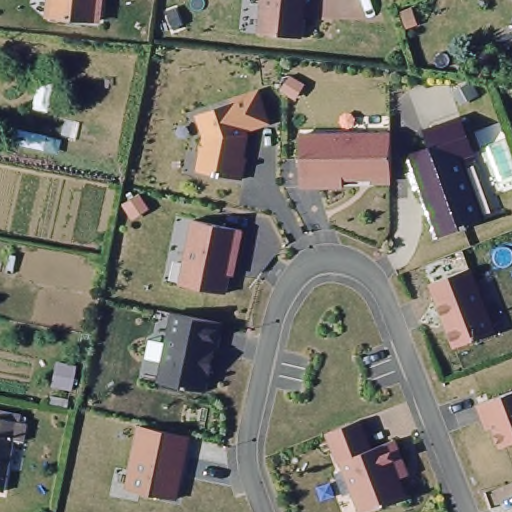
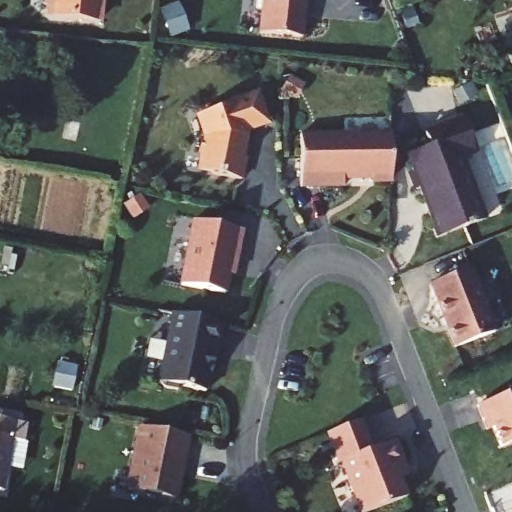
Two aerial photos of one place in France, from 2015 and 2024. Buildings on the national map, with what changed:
unchanged [(52,19),(54,0),(103,0),(101,24),(52,19)]
unchanged [(301,40),(259,35),(263,0),(305,0),(301,40)]
unchanged [(202,155),(198,155),(200,142),(204,144),(205,140),(197,117),(253,96),(263,123),(241,131),(243,137),(239,159),(244,160),(240,182),(199,175),(202,155)]
unchanged [(446,233),(446,234),(437,237),(433,229),(435,228),(429,210),(432,209),(428,199),(425,200),(420,185),(415,187),(409,170),(414,169),(409,154),(432,145),(426,127),(462,115),(475,150),(462,155),(484,220),(446,233)]
unchanged [(386,184),(374,185),(370,180),(370,178),(364,179),(364,181),(341,181),(341,189),(299,190),(298,137),(389,136),(390,180),(386,184)]
unchanged [(242,232),(236,266),(232,265),(226,296),(182,288),(193,223),(242,232)]
unchanged [(468,268),(493,332),(454,348),(429,284),(468,268)]
unchanged [(217,348),(213,347),(212,352),(208,355),(205,370),(207,374),(203,392),(179,387),(176,390),(163,387),(161,383),(157,383),(171,314),(222,325),(217,348)]
unchanged [(499,448),(492,428),(488,420),(482,421),(476,405),(512,392),(512,443),(499,448)]
unchanged [(24,422),(21,439),(11,437),(0,482),(0,417),(24,422)]
unchanged [(369,450),(393,440),(402,465),(398,467),(402,477),(397,479),(405,497),(367,512),(359,512),(340,462),(337,463),(325,433),(358,420),(369,450)]
unchanged [(189,437),(177,500),(124,488),(137,425),(189,437)]

